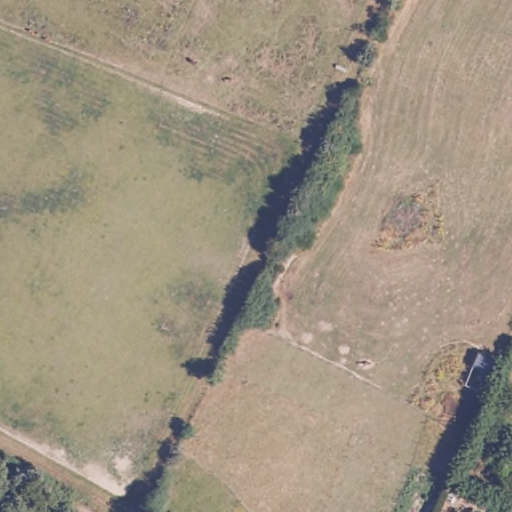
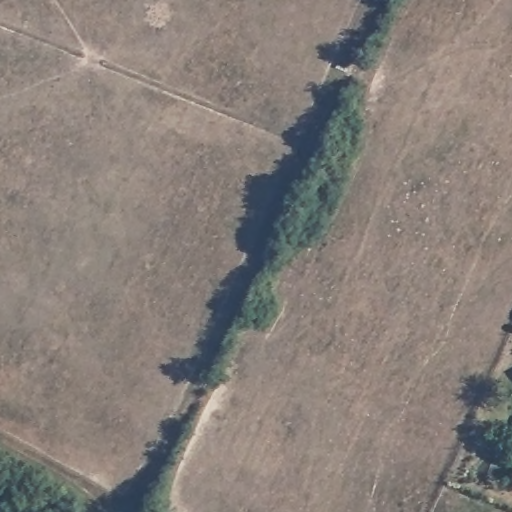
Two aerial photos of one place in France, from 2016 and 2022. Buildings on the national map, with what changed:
[]

